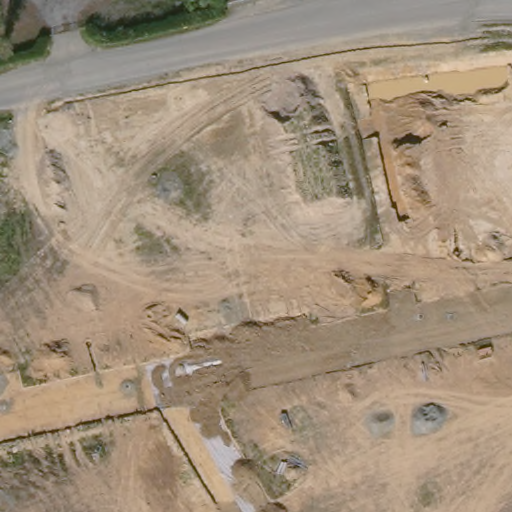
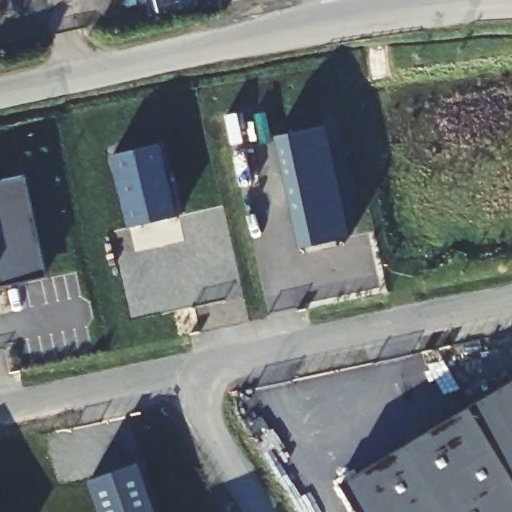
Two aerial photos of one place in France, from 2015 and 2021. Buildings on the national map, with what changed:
new [(327,125),(351,238),(299,250),(275,136),(327,125)]
new [(178,216),(129,229),(111,155),(162,144),(178,216)]
new [(0,285),(0,182),(23,176),(44,276),(0,285)]
new [(512,476),(512,512),(361,512),(344,485),(471,407),(512,476)]

